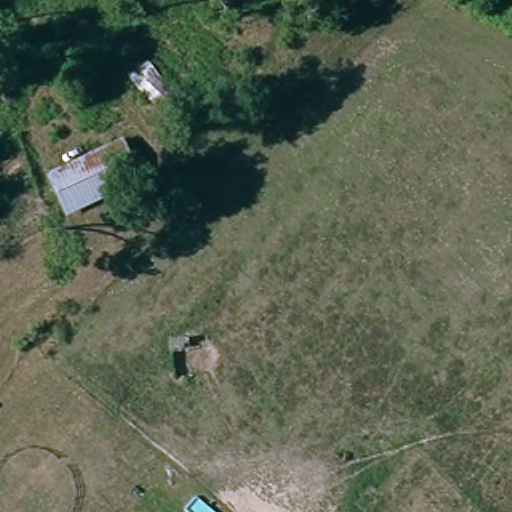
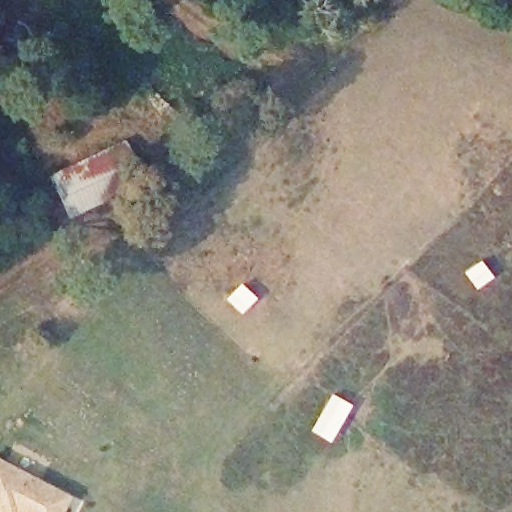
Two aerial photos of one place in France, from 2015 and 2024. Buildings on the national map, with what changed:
unchanged [(60,224),(44,185),(113,154),(115,153),(132,192),(125,195),(60,224)]
new [(53,492),(42,512),(10,512),(1,508),(0,511),(0,464),(53,492)]

